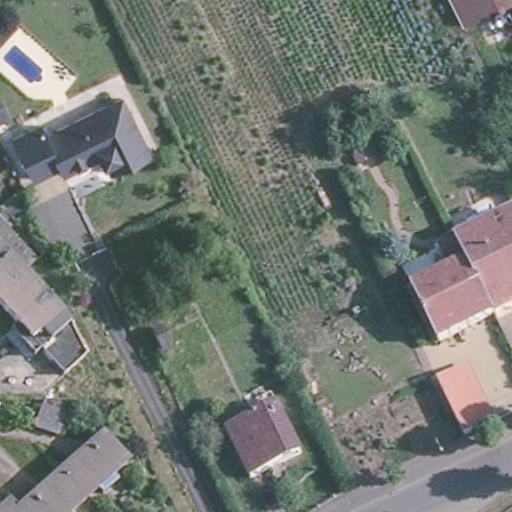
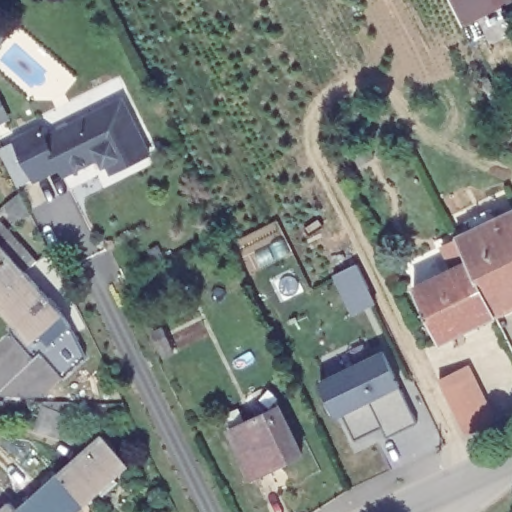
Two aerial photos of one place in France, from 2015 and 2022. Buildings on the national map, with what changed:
unchanged [(461,27),(448,0),(508,0),(503,2),(509,14),(489,26),(483,15),(467,24),(461,27)]
unchanged [(107,165),(104,166),(100,159),(67,176),(64,177),(60,170),(37,183),(16,144),(43,129),(47,137),(122,100),(150,155),(127,166),(112,174),(107,165)]
unchanged [(34,262),(25,270),(0,241),(0,219),(0,218),(0,201),(18,186),(30,210),(12,217),(34,262)]
unchanged [(451,265),(441,244),(443,243),(455,237),(512,209),(512,303),(492,312),(437,340),(410,285),(451,265)]
unchanged [(25,270),(0,293),(0,241),(25,270)]
unchanged [(25,270),(63,312),(33,338),(0,301),(0,293),(25,270)]
unchanged [(176,350),(166,355),(155,333),(165,328),(176,350)]
unchanged [(95,366),(79,376),(83,382),(67,392),(51,367),(82,347),(95,366)]
new [(383,350),(417,423),(388,437),(377,415),(369,420),(372,431),(355,438),(343,412),(339,415),(323,383),(383,350)]
unchanged [(445,390),(440,381),(457,373),(468,367),(473,377),(495,422),(484,427),(467,435),(458,417),(445,390)]
unchanged [(304,452),(255,476),(230,428),(280,403),(304,452)]
unchanged [(65,414),(58,434),(34,427),(40,406),(65,414)]
unchanged [(59,472),(102,434),(129,463),(85,501),(59,472)]
unchanged [(18,512),(17,510),(59,472),(85,501),(73,512),(18,512)]
unchanged [(0,512),(0,509),(8,501),(17,510),(18,512),(0,512)]

